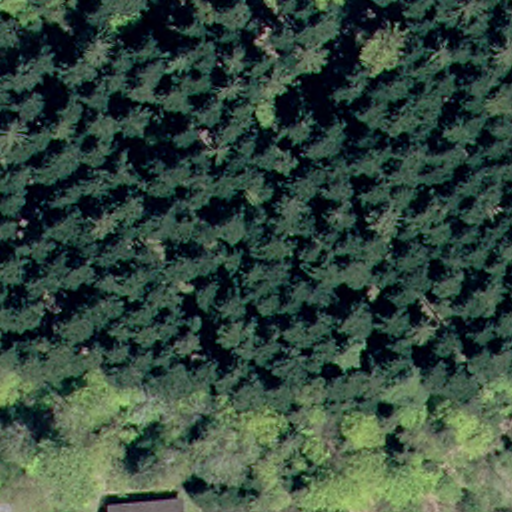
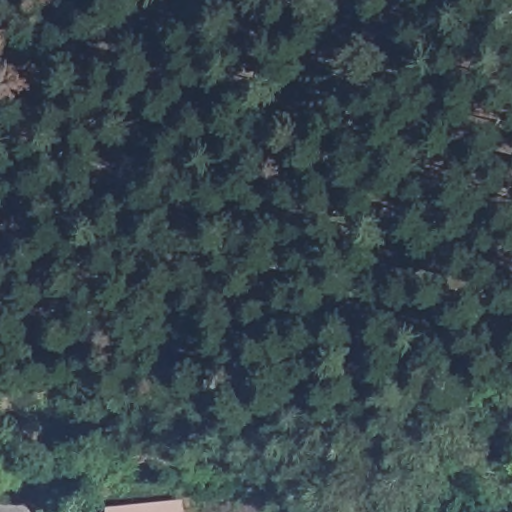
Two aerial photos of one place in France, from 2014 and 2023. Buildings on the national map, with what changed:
unchanged [(179,506),(180,512),(109,512),(109,510),(179,506)]

